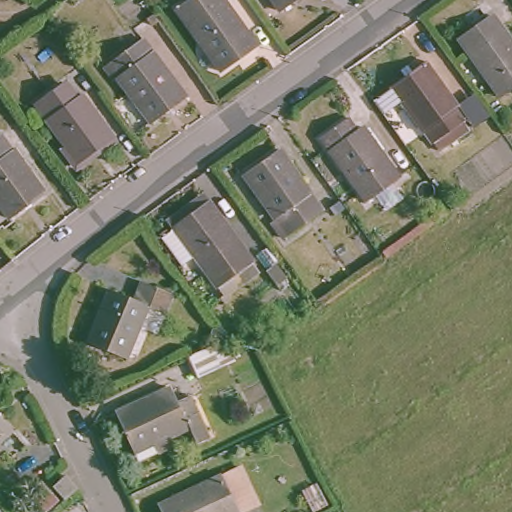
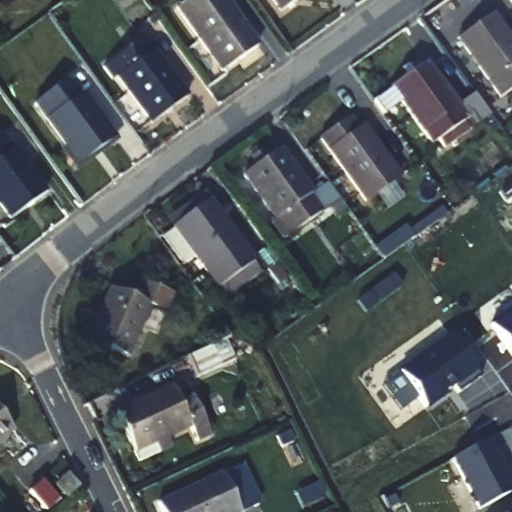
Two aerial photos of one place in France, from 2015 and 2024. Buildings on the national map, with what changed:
unchanged [(177,9),(188,0),(225,0),(260,47),(223,74),(177,9)]
unchanged [(276,0),(297,0),(283,10),(276,0)]
unchanged [(502,97),(459,36),(490,13),(512,44),(512,90),(502,97)]
unchanged [(148,123),(106,62),(140,38),(183,97),(148,123)]
unchanged [(391,89),(390,87),(404,77),(400,72),(410,66),(413,70),(426,62),(466,117),(463,120),(470,129),(452,142),(445,133),(430,143),(400,102),(383,114),(374,102),(391,89)]
unchanged [(70,100),(78,95),(111,138),(74,163),(33,104),(59,84),(70,100)]
unchanged [(357,131),(365,127),(400,174),(365,199),(319,135),(345,115),(357,131)]
unchanged [(45,196),(9,219),(0,206),(0,136),(1,135),(2,135),(45,196)]
unchanged [(322,213),(288,237),(243,176),(277,151),(322,213)]
unchanged [(255,262),(219,287),(195,256),(183,265),(163,236),(177,227),(175,225),(208,200),(255,262)]
unchanged [(170,297),(162,315),(158,314),(152,330),(140,326),(125,360),(85,345),(107,294),(130,301),(137,285),(170,297)]
new [(490,322),(512,307),(512,354),(490,322)]
unchanged [(216,346),(212,339),(215,331),(221,327),(230,340),(216,346)]
new [(448,334),(477,373),(426,410),(397,371),(448,334)]
unchanged [(197,446),(190,429),(165,441),(170,452),(140,466),(116,414),(171,388),(177,403),(190,397),(210,439),(197,446)]
unchanged [(0,447),(0,413),(16,431),(0,447)]
new [(512,486),(512,491),(478,508),(452,457),(487,438),(512,486)]
unchanged [(160,506),(222,477),(232,472),(250,512),(249,512),(162,512),(160,506)]
unchanged [(70,499),(59,488),(72,476),(81,488),(70,499)]
unchanged [(47,511),(30,492),(44,481),(62,499),(47,511)]
new [(512,510),(512,512),(509,512),(512,510)]
unchanged [(2,511),(2,512),(1,512),(2,511)]

